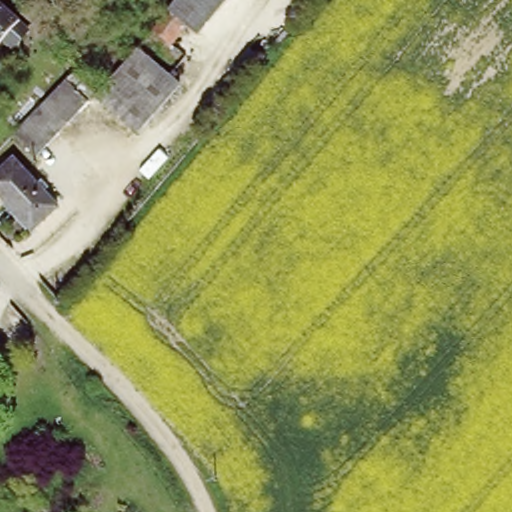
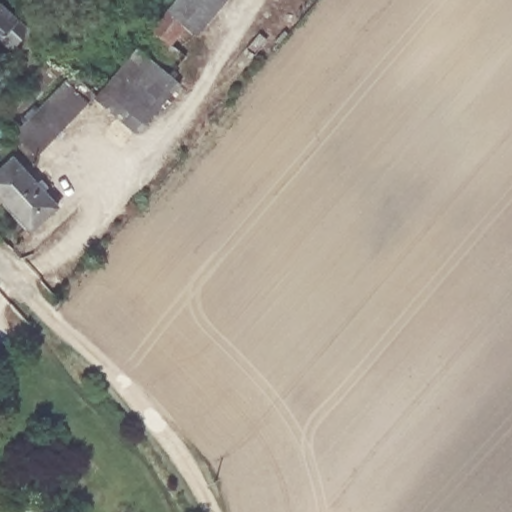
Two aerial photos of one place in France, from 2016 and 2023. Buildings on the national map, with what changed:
unchanged [(15,23),(25,32),(15,44),(5,36),(0,41),(0,0),(5,0),(22,15),(15,23)]
unchanged [(150,25),(168,5),(172,0),(218,0),(195,27),(182,16),(165,37),(150,25)]
unchanged [(180,84),(140,132),(100,96),(139,50),(180,84)]
unchanged [(89,101),(39,152),(19,133),(70,82),(89,101)]
unchanged [(44,181),(57,196),(52,201),(60,210),(35,232),(0,196),(0,177),(15,162),(37,186),(44,181)]

